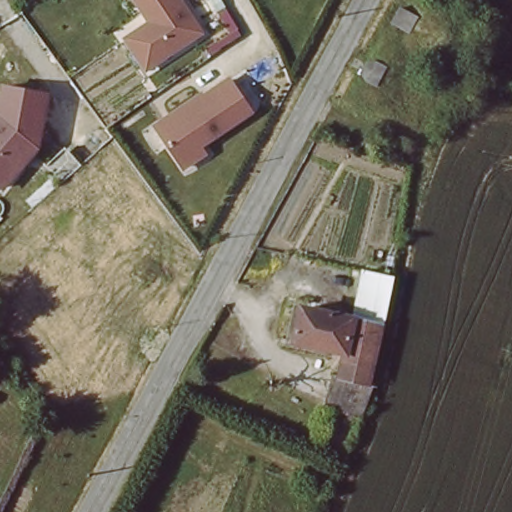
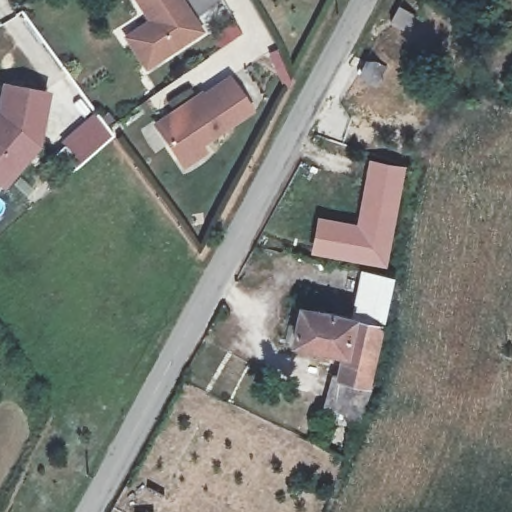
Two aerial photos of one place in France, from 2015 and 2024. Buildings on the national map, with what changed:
unchanged [(122,0),(179,0),(205,33),(141,74),(115,41),(144,23),(122,0)]
unchanged [(225,79),(249,112),(204,145),(207,151),(177,171),(149,129),(225,79)]
unchanged [(3,190),(0,188),(0,93),(46,96),(35,151),(3,190)]
new [(96,118),(108,135),(78,161),(66,144),(96,118)]
new [(318,214),(357,221),(369,157),(408,165),(388,266),(311,253),(318,214)]
unchanged [(327,404),(334,370),(342,373),(348,346),(295,336),(304,303),(355,313),(367,266),(394,271),(374,378),(380,380),(365,412),(327,404)]

